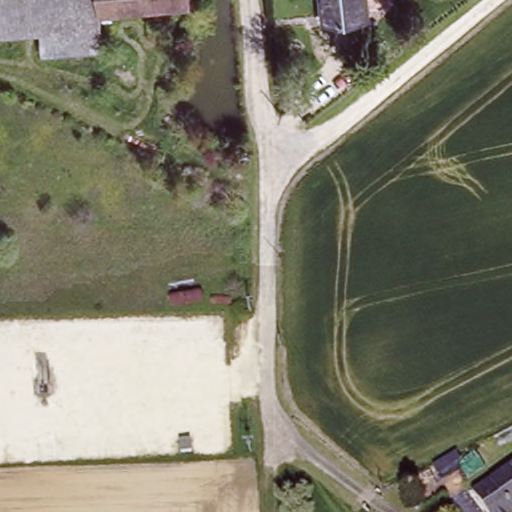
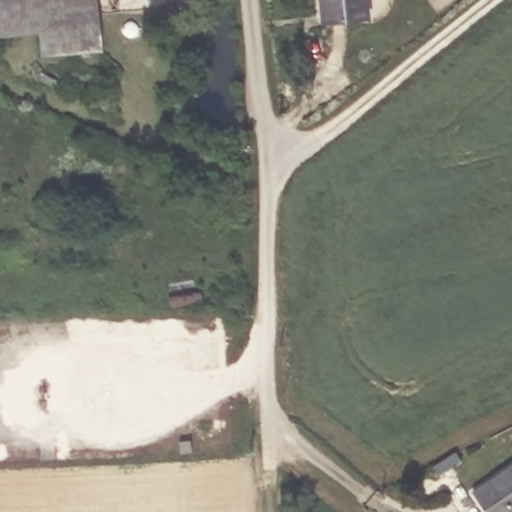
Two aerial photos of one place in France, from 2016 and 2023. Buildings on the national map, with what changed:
unchanged [(102,51),(41,54),(37,29),(0,32),(0,0),(96,0),(98,16),(102,51)]
unchanged [(98,16),(96,0),(182,0),(183,5),(98,16)]
unchanged [(320,20),(319,0),(370,0),(371,17),(320,20)]
unchanged [(512,464),(512,512),(489,512),(474,490),(512,464)]

